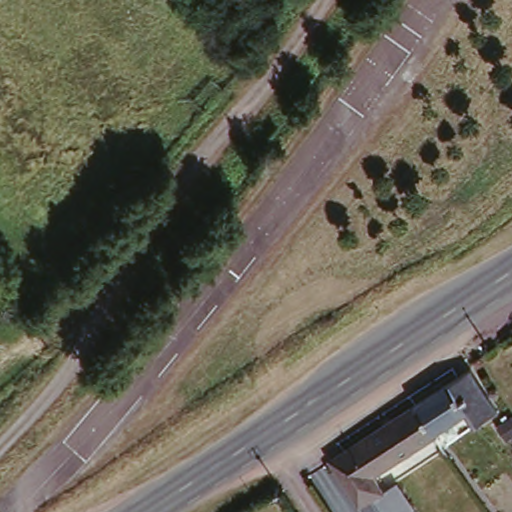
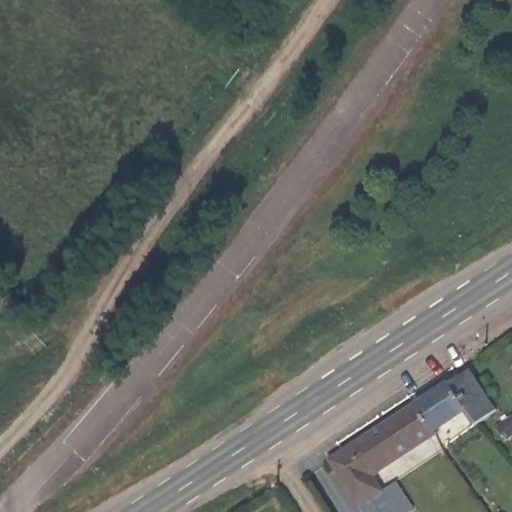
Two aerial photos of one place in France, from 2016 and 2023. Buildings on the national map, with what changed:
unchanged [(469,365),(494,401),(472,419),(461,402),(432,421),(419,400),(469,365)]
unchanged [(419,400),(432,421),(391,449),(377,427),(419,400)]
unchanged [(331,458),(377,427),(391,449),(376,460),(402,498),(381,512),(370,512),(358,493),(355,495),(331,458)]

